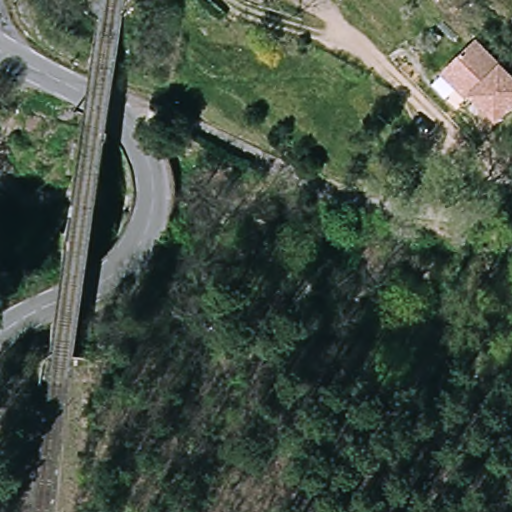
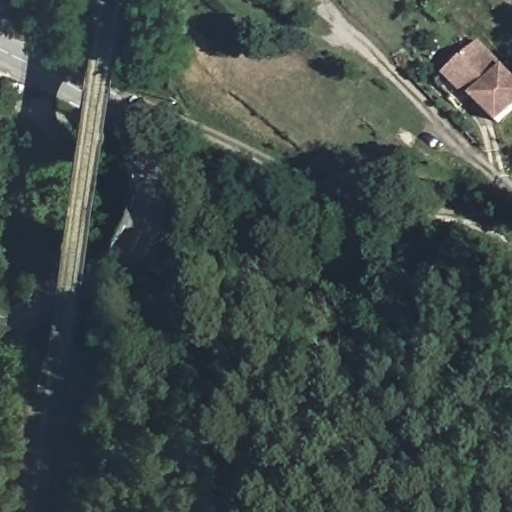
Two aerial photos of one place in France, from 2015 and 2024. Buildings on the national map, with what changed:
unchanged [(499,124),(474,97),(468,100),(445,74),(480,38),(512,73),(512,111),(499,124)]
unchanged [(15,84),(35,97),(28,109),(7,96),(15,84)]

